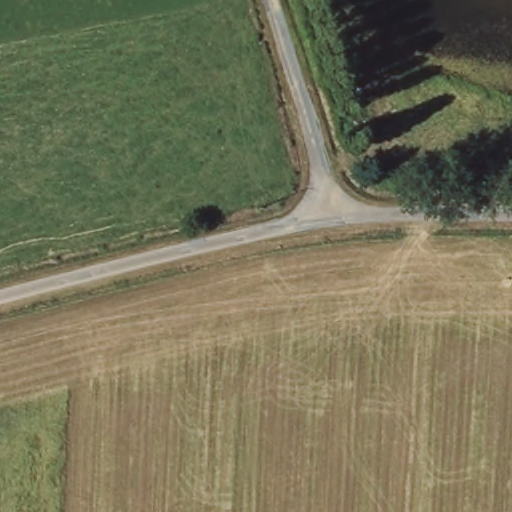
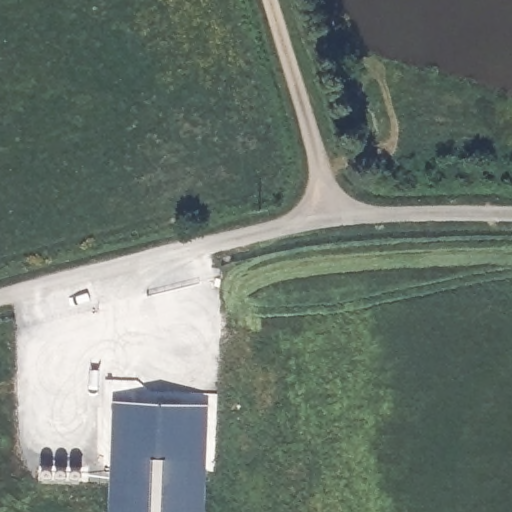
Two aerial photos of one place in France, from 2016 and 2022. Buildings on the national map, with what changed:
new [(206,512),(110,512),(113,401),(209,405),(206,512)]

